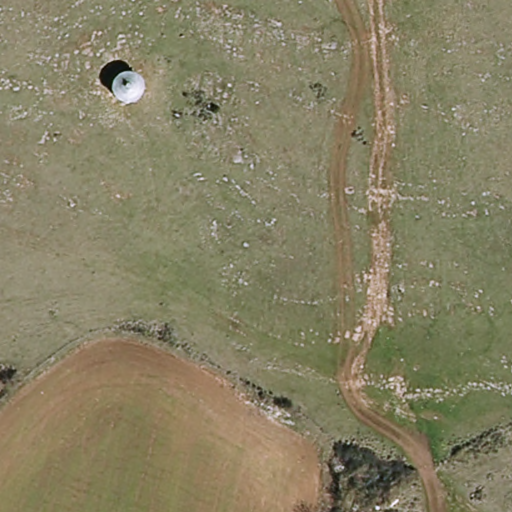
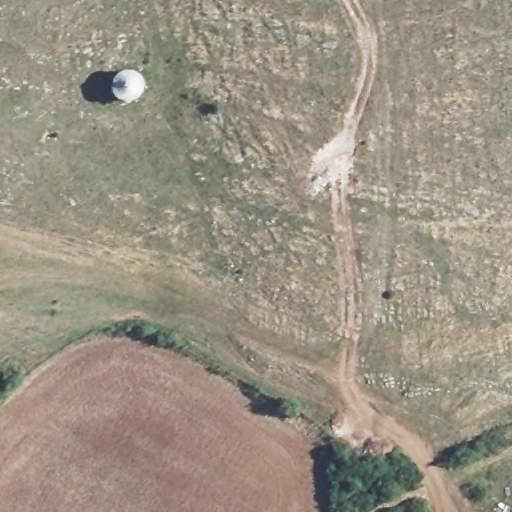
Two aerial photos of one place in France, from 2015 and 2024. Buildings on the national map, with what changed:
unchanged [(123,71),(129,70),(137,71),(142,77),(145,82),(145,91),(141,97),(129,103),(123,101),(116,96),(113,92),(113,85),(114,81),(117,76),(120,73),(123,71)]

